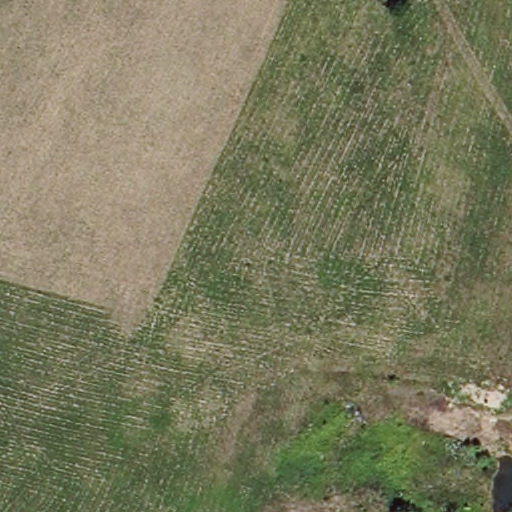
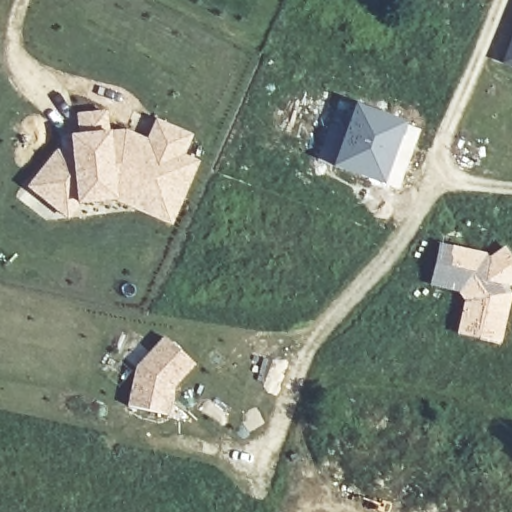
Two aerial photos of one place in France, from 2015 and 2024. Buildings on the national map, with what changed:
new [(502,61),(512,36),(512,65),(502,61)]
new [(62,137),(80,135),(77,114),(105,111),(107,131),(124,130),(147,139),(156,119),(189,134),(181,154),(196,161),(177,203),(119,178),(76,183),(54,205),(30,181),(62,150),(62,137)]
new [(76,183),(119,178),(177,203),(169,221),(113,198),(79,201),(65,215),(54,205),(76,183)]
new [(437,241),(481,251),(489,254),(504,244),(512,255),(512,286),(507,289),(511,294),(499,345),(455,334),(461,299),(455,292),(427,285),(437,241)]
new [(134,367),(163,335),(195,364),(175,387),(168,414),(126,405),(134,367)]

